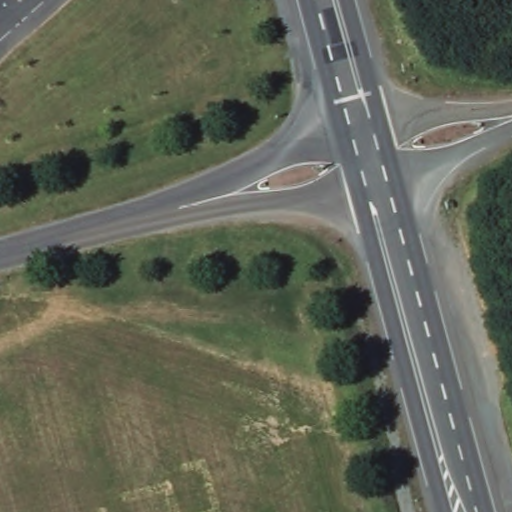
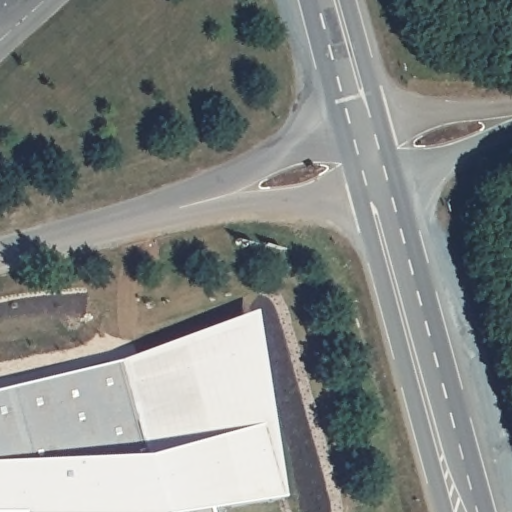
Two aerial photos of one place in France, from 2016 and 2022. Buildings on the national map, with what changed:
new [(125,363),(252,317),(280,496),(211,508),(212,512),(0,512),(0,393),(125,363)]

